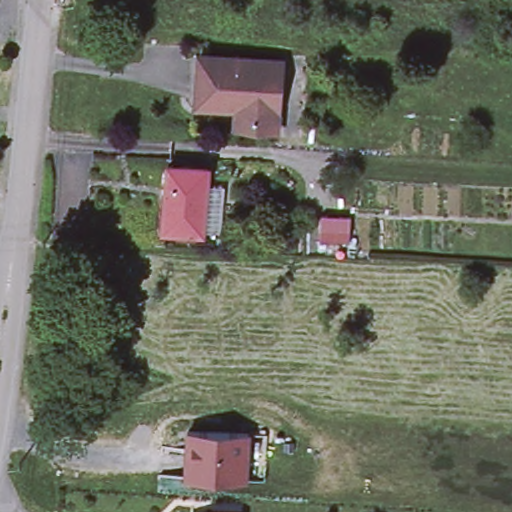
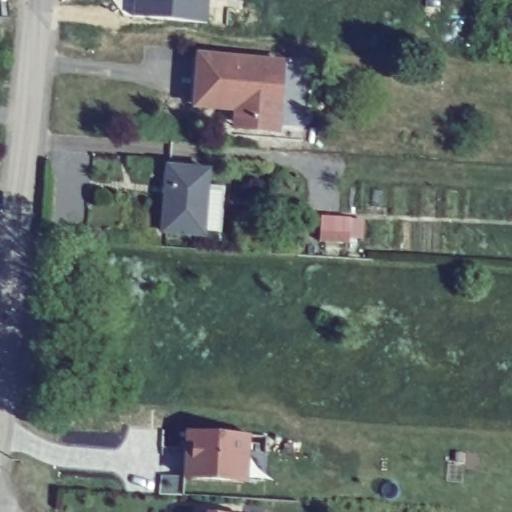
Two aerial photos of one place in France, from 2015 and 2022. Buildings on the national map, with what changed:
new [(208,22),(133,15),(134,0),(209,0),(208,22)]
unchanged [(238,108),(196,105),(200,55),(283,62),(279,112),(276,112),(274,131),(252,129),(236,128),(238,108)]
unchanged [(163,165),(213,167),(211,194),(231,195),(226,231),(208,229),(206,241),(159,234),(163,165)]
unchanged [(354,215),(352,240),(322,239),(324,214),(354,215)]
unchanged [(246,484),(183,480),(186,432),(249,436),(246,484)]

